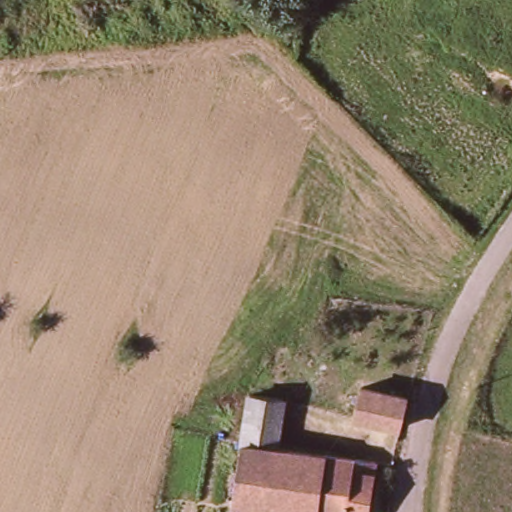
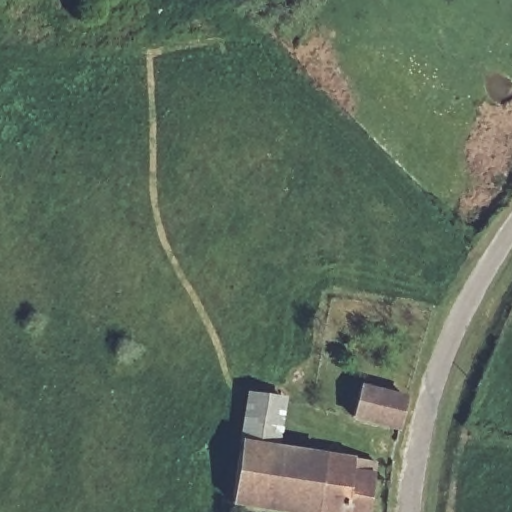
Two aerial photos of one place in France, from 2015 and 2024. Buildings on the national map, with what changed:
unchanged [(398,431),(353,420),(360,390),(405,401),(402,416),(398,431)]
unchanged [(241,448),(248,401),(283,407),(276,454),(241,448)]
unchanged [(276,454),(372,468),(366,512),(261,512),(231,507),(241,448),(276,454)]

